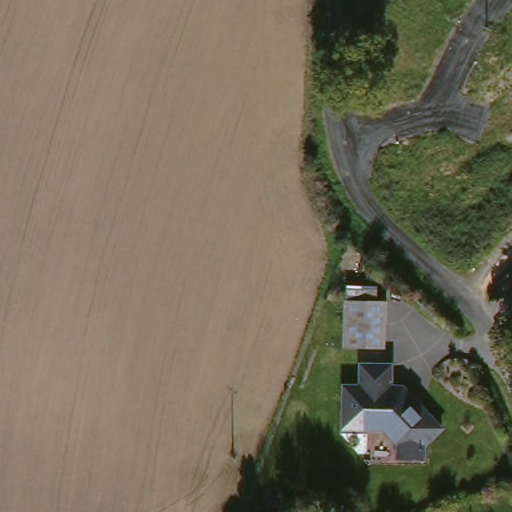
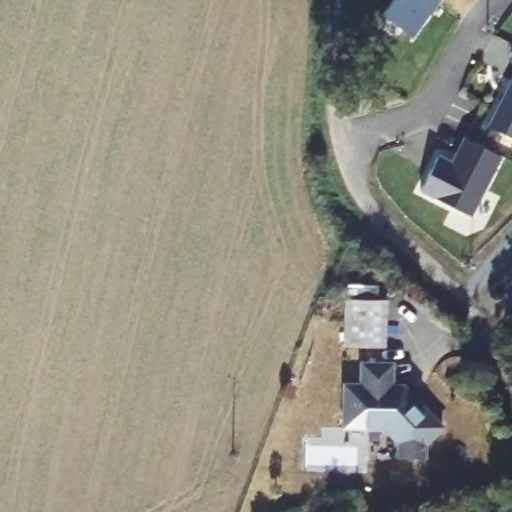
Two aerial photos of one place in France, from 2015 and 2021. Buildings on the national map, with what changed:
unchanged [(436,0),(410,34),(381,11),(390,0),(436,0)]
new [(512,136),(483,121),(507,75),(512,67),(512,136)]
new [(503,157),(472,219),(420,193),(440,156),(451,163),(463,138),(503,157)]
demolished [(466,203),(480,187),(500,202),(480,225),(474,232),(455,216),(466,203)]
unchanged [(355,347),(354,321),(353,299),(392,297),(395,344),(355,347)]
unchanged [(411,387),(421,395),(419,397),(425,403),(427,401),(453,424),(436,442),(437,457),(411,459),(410,443),(396,430),(354,432),(353,415),(353,413),(353,400),(352,390),(368,389),(368,381),(367,366),(399,365),(399,380),(400,387),(411,387)]

